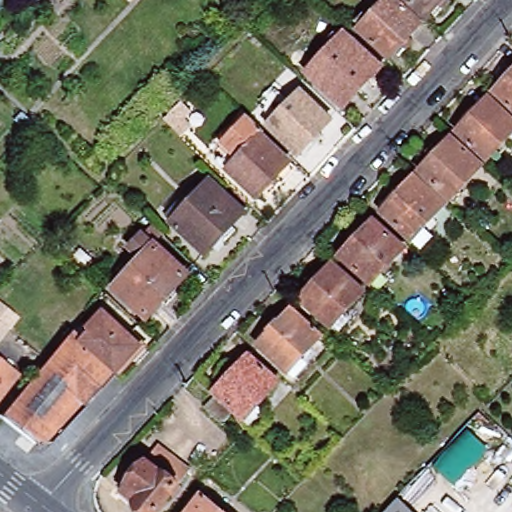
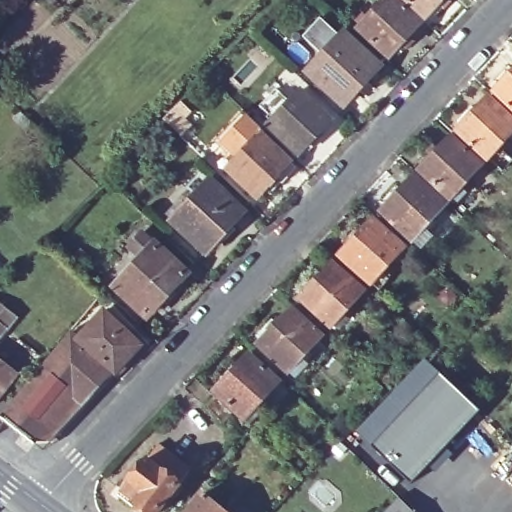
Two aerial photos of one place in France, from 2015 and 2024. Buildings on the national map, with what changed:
unchanged [(408,40),(393,56),(388,51),(383,56),(353,29),(379,0),(394,0),(417,20),(403,35),(408,40)]
unchanged [(431,15),(426,11),(420,16),(403,0),(443,0),(444,1),(431,15)]
unchanged [(339,104),(303,70),(340,31),(376,64),(339,104)]
unchanged [(494,92),(499,86),(494,81),(509,65),(512,69),(512,108),(494,92)]
unchanged [(313,131),(319,136),(304,151),(299,147),(294,152),(264,125),(268,121),(262,116),(264,113),(255,105),(272,88),(285,101),(297,89),(327,117),(313,131)]
unchanged [(487,158),(458,131),(463,125),(458,120),(472,105),(478,110),(491,96),(512,117),(512,132),(487,158)]
unchanged [(164,119),(182,101),(191,110),(183,119),(192,129),(184,138),(164,119)]
unchanged [(258,133),(286,160),(273,176),(277,180),(263,196),(258,192),(253,196),(223,168),(234,156),(220,142),(245,116),(259,130),(258,133)]
unchanged [(449,199),(420,171),(425,166),(420,161),(434,145),(439,150),(453,136),(483,163),(449,199)]
unchanged [(413,239),(383,211),(387,206),(382,201),(397,184),(403,190),(416,176),(444,204),(413,239)]
unchanged [(232,224),(236,228),(224,241),(219,237),(206,252),(172,219),(175,214),(172,210),(177,205),(182,209),(210,178),(244,210),(232,224)]
unchanged [(392,261),(396,266),(376,287),(342,255),(349,247),(344,242),(357,229),(362,233),(375,219),(404,247),(392,261)]
unchanged [(151,249),(182,277),(144,319),(112,290),(145,255),(132,243),(148,226),(161,238),(151,249)]
unchanged [(351,304),(354,307),(334,328),(302,298),(307,291),(302,286),(316,272),(321,276),(334,263),(364,290),(351,304)]
unchanged [(289,371),(259,343),(267,334),(261,330),(273,318),(278,322),(292,308),(322,335),(289,371)]
unchanged [(89,347),(84,353),(78,347),(77,335),(81,339),(108,310),(143,342),(116,371),(89,347)]
unchanged [(51,441),(36,441),(5,415),(74,332),(77,335),(78,347),(84,353),(89,347),(116,371),(115,372),(51,441)]
unchanged [(264,397),(269,401),(259,412),(254,407),(244,418),(215,390),(222,382),(217,378),(229,364),(235,369),(249,353),(279,382),(264,397)]
new [(421,357),(437,372),(368,445),(352,430),(421,357)]
unchanged [(0,398),(0,361),(19,375),(0,398)]
new [(437,372),(478,409),(408,483),(368,445),(437,372)]
unchanged [(223,423),(205,407),(215,397),(232,413),(223,423)]
unchanged [(159,512),(147,512),(138,504),(134,508),(119,496),(147,459),(180,484),(159,512)]
unchanged [(204,495),(225,512),(190,512),(204,495)]
unchanged [(398,498),(413,512),(385,512),(398,498)]

